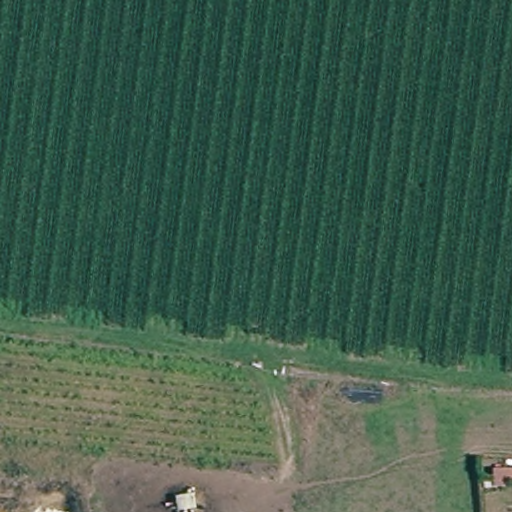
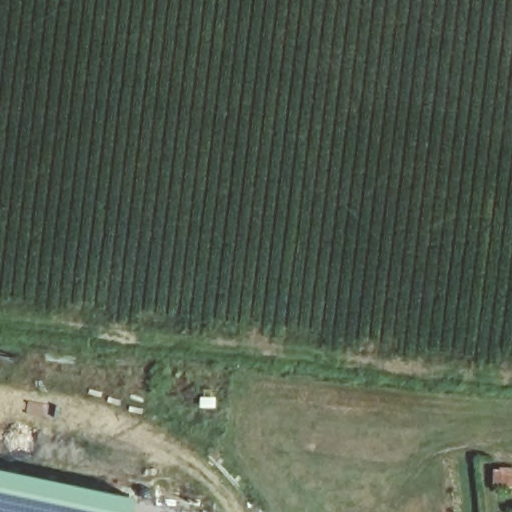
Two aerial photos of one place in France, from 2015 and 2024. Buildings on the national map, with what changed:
new [(141,498),(138,512),(0,512),(0,470),(141,498)]

